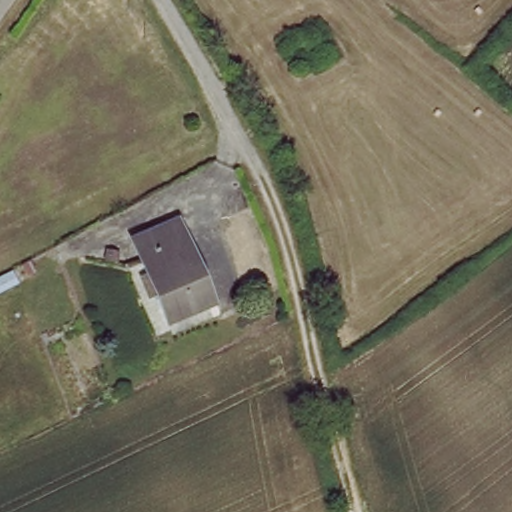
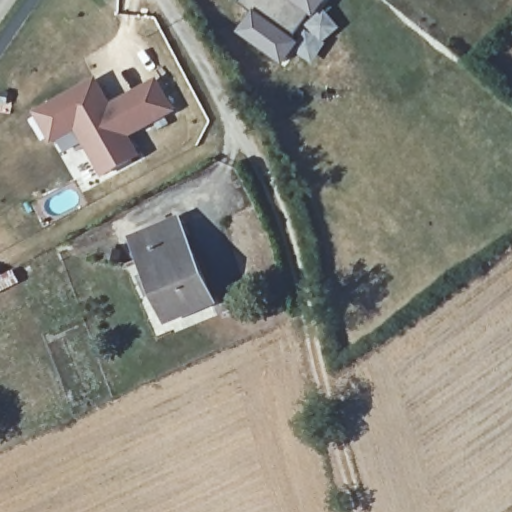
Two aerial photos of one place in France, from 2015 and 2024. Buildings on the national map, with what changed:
new [(313,19),(309,15),(294,38),(301,43),(283,66),(238,32),(253,12),(241,3),(243,0),(328,0),(313,19)]
new [(75,130),(52,142),(33,111),(97,76),(112,103),(157,77),(176,112),(131,137),(141,156),(102,177),(75,130)]
unchanged [(142,236),(185,215),(196,237),(142,267),(137,257),(130,241),(142,236)]
unchanged [(196,237),(222,294),(167,322),(142,267),(196,237)]

